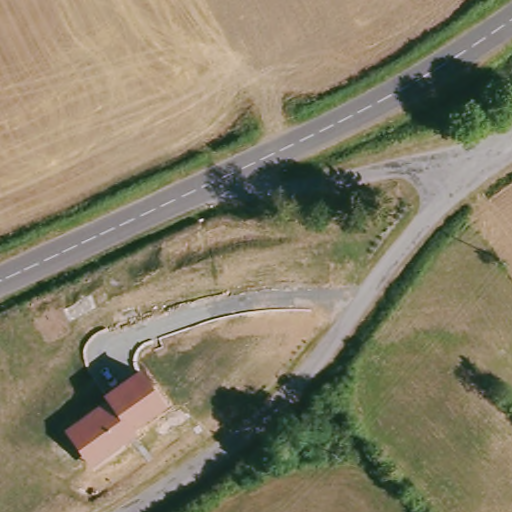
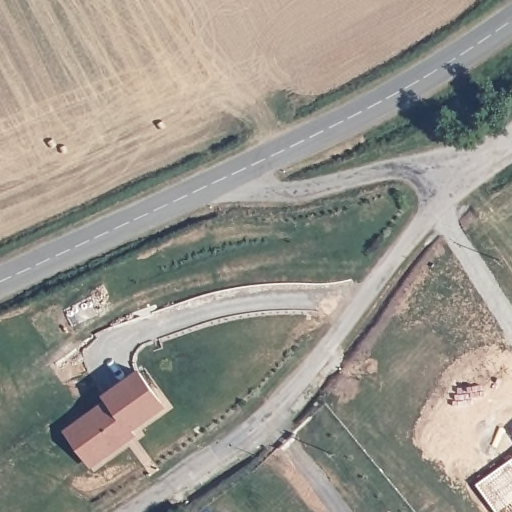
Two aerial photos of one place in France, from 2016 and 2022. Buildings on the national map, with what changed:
unchanged [(169,402),(133,428),(138,436),(90,467),(64,429),(109,398),(104,392),(140,366),(169,402)]
new [(477,485),(512,459),(512,512),(497,512),(477,485)]

